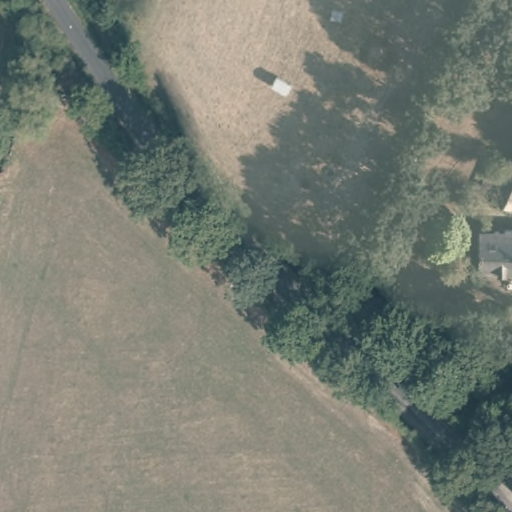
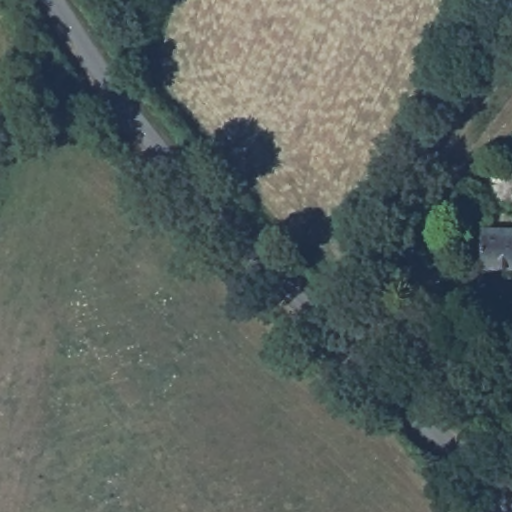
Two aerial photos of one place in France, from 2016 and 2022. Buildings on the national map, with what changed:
unchanged [(491,195),(503,167),(512,170),(512,203),(491,195)]
unchanged [(387,291),(362,280),(381,217),(408,225),(387,291)]
unchanged [(480,271),(481,231),(512,231),(512,271),(480,271)]

